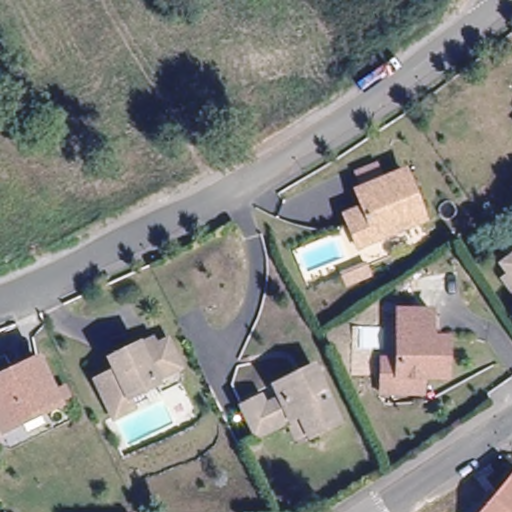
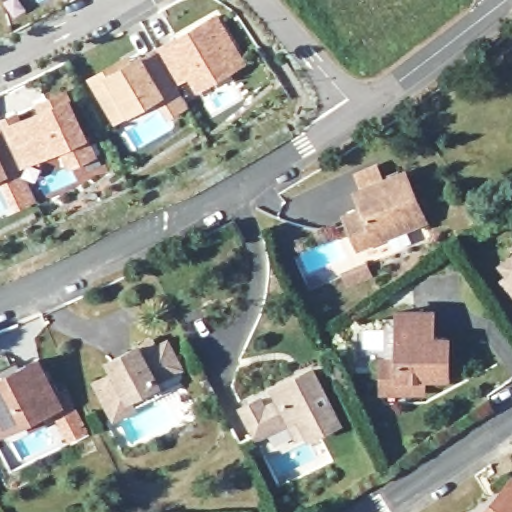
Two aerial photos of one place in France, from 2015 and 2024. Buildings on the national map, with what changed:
new [(214,16),(241,64),(196,89),(187,73),(172,81),(155,50),(154,50),(214,16)]
new [(171,117),(169,112),(157,92),(111,119),(89,79),(120,61),(123,65),(136,57),(138,56),(140,60),(155,50),(172,81),(174,84),(185,103),(179,106),(181,110),(171,117)]
new [(65,170),(56,150),(20,165),(0,116),(18,109),(20,115),(37,109),(34,101),(68,89),(71,95),(90,136),(97,155),(65,170)]
new [(0,186),(0,152),(7,170),(20,165),(35,202),(11,212),(0,186)]
unchanged [(356,196),(360,195),(353,181),(377,172),(382,186),(401,179),(420,227),(357,252),(348,228),(345,221),(363,214),(356,196)]
unchanged [(488,270),(512,250),(512,302),(488,270)]
unchanged [(362,267),(366,277),(345,286),(341,276),(362,267)]
unchanged [(375,395),(375,380),(375,364),(390,365),(392,316),(426,317),(425,343),(440,343),(439,365),(438,382),(428,382),(415,381),(415,396),(375,395)]
unchanged [(95,392),(114,383),(109,372),(137,358),(139,361),(151,355),(153,360),(160,355),(167,358),(177,379),(154,391),(155,395),(128,407),(134,418),(112,428),(95,392)]
unchanged [(56,404),(1,431),(0,429),(0,377),(35,360),(56,404)]
unchanged [(308,440),(299,420),(255,440),(242,410),(260,402),(263,411),(280,403),(275,392),(313,375),(337,426),(308,440)]
unchanged [(504,499),(499,495),(512,479),(512,512),(493,512),(504,499)]
unchanged [(485,510),(488,512),(484,512),(485,510)]

